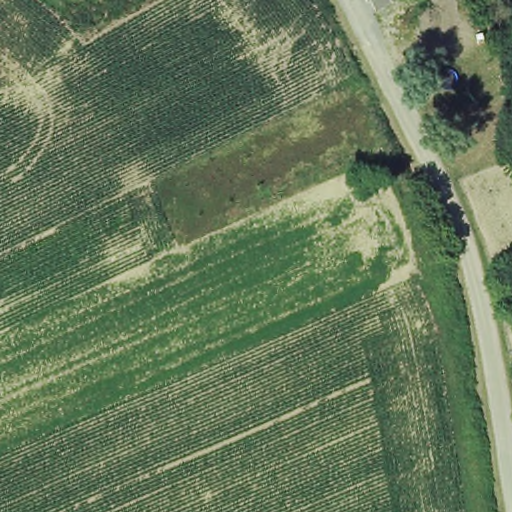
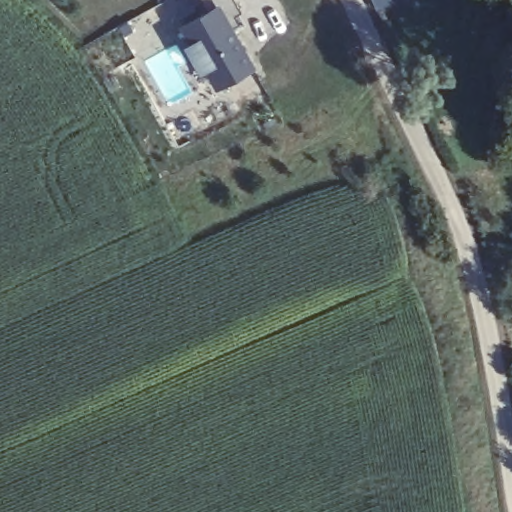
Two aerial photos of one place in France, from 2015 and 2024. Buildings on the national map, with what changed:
new [(199,0),(233,0),(240,12),(233,15),(238,24),(229,29),(250,66),(216,85),(205,67),(200,70),(186,46),(192,43),(182,26),(206,12),(199,0)]

